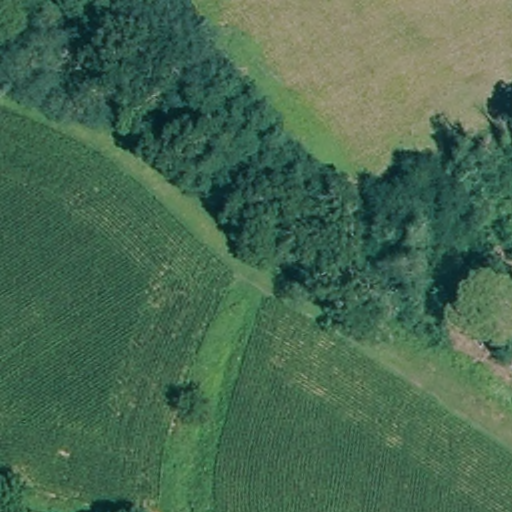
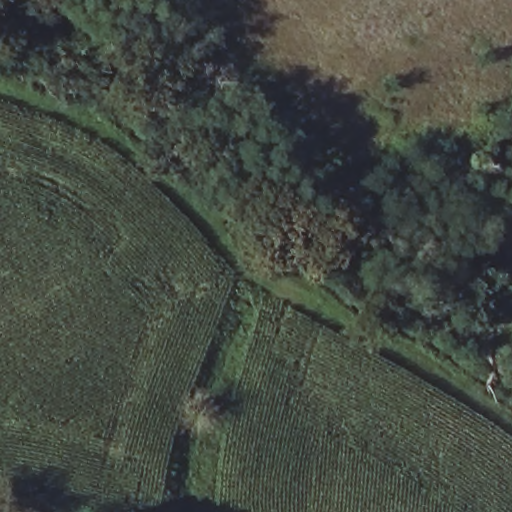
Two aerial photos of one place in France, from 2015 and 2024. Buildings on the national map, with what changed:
unchanged [(512,370),(512,376),(509,373),(512,370)]

